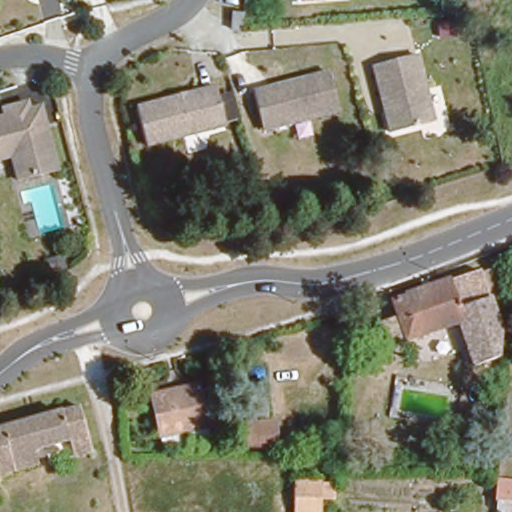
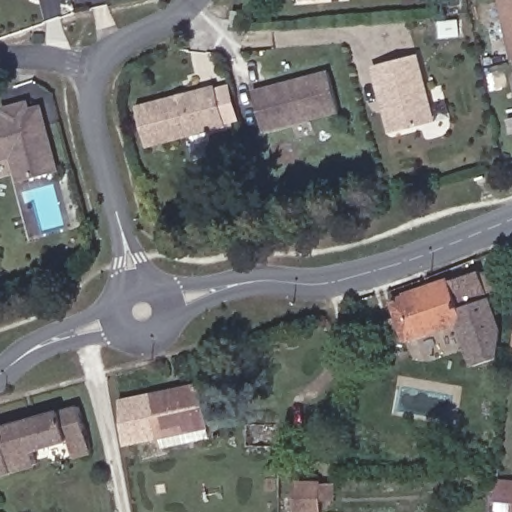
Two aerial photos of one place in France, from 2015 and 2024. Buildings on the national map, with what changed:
new [(512,57),(499,0),(512,0),(512,57)]
unchanged [(246,23),(226,24),(227,1),(249,2),(246,23)]
unchanged [(455,32),(440,34),(439,15),(454,14),(455,32)]
unchanged [(418,122),(388,129),(382,106),(386,105),(384,93),(379,94),(372,63),(414,54),(428,108),(430,119),(418,122)]
unchanged [(263,129),(255,89),(288,82),(289,86),(297,85),(297,80),(331,72),(339,111),(263,129)]
unchanged [(225,127),(146,145),(138,105),(178,96),(180,101),(185,100),(184,95),(216,88),(225,127)]
unchanged [(47,171),(7,180),(2,156),(0,156),(0,115),(32,107),(47,171)]
unchanged [(505,291),(491,298),(500,326),(499,355),(471,365),(456,322),(402,341),(390,299),(450,278),(480,270),(498,267),(505,291)]
unchanged [(159,442),(157,427),(154,405),(169,401),(165,382),(196,376),(204,417),(207,434),(159,442)]
new [(124,446),(120,400),(167,389),(169,401),(154,405),(157,427),(159,439),(124,446)]
unchanged [(7,471),(0,473),(0,427),(80,407),(86,437),(36,450),(38,459),(38,463),(7,471)]
unchanged [(267,444),(243,444),(243,427),(267,427),(267,444)]
unchanged [(512,512),(495,512),(498,481),(512,482),(512,512)]
unchanged [(322,482),(322,512),(293,512),(293,482),(322,482)]

